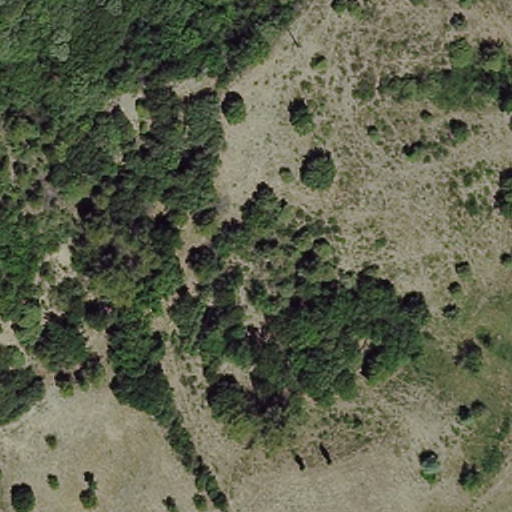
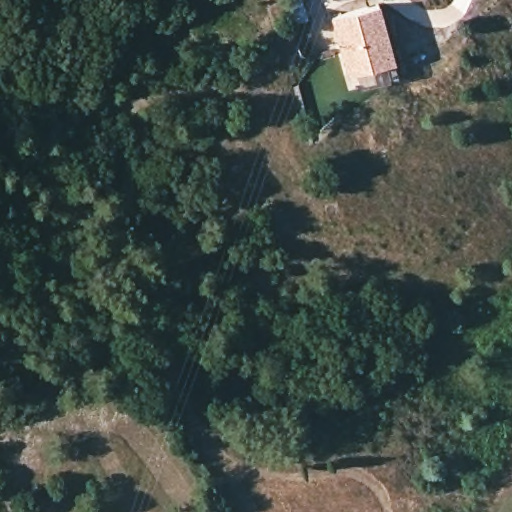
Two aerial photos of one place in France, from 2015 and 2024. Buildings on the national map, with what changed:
new [(378,3),(394,62),(347,75),(331,16),(378,3)]

